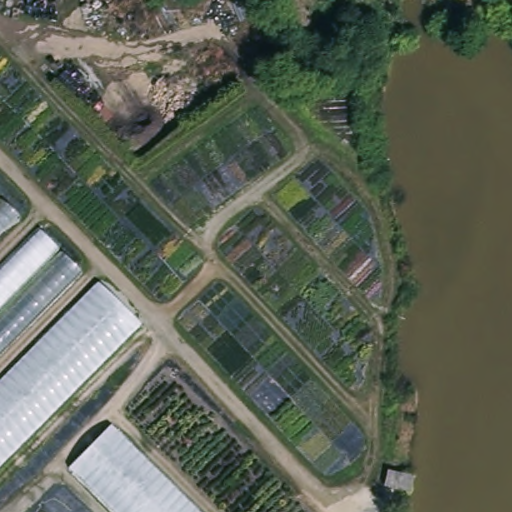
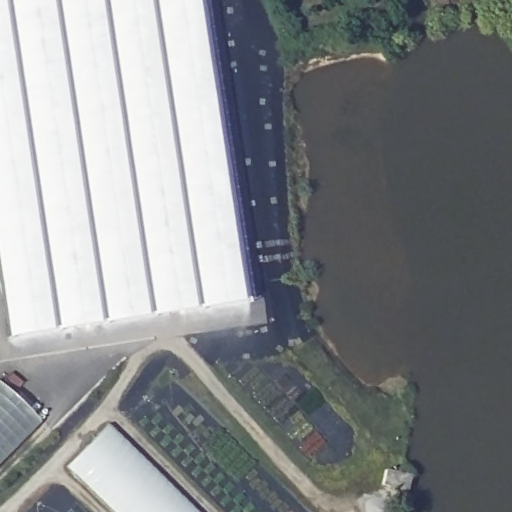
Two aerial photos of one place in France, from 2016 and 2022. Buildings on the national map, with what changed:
new [(204,0),(248,303),(9,337),(0,276),(0,0),(204,0)]
unchanged [(40,422),(0,461),(0,384),(40,422)]
unchanged [(70,467),(111,426),(198,512),(116,512),(70,467)]
unchanged [(382,485),(386,469),(400,473),(397,488),(382,485)]

